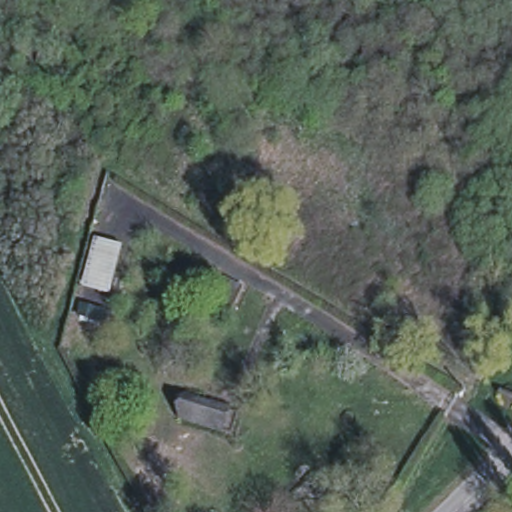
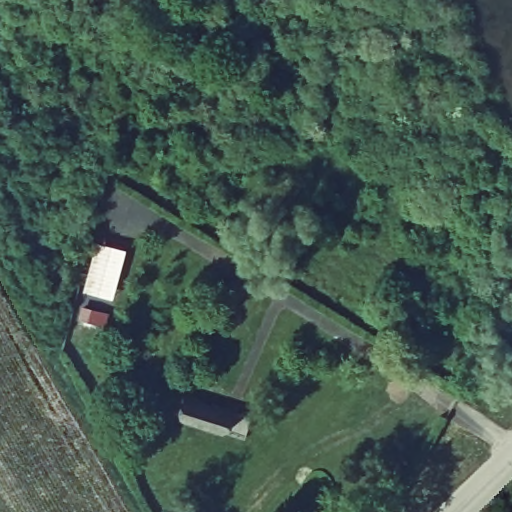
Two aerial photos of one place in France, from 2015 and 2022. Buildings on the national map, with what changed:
unchanged [(124,250),(112,299),(82,292),(95,241),(124,250)]
unchanged [(234,415),(227,435),(185,420),(192,401),(234,415)]

